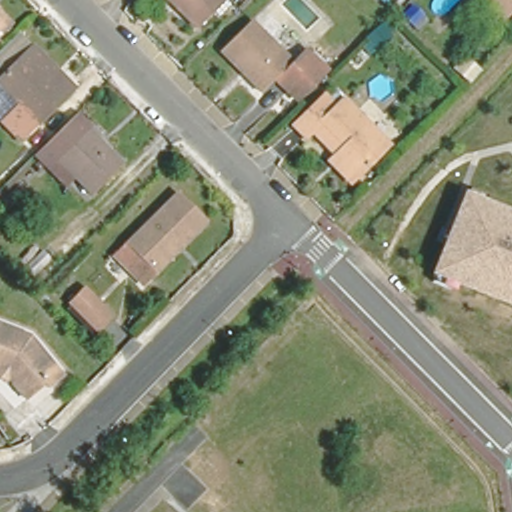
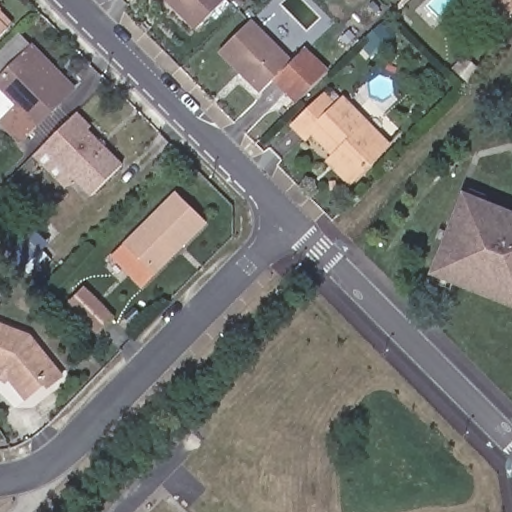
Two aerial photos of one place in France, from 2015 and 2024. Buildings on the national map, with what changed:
unchanged [(189,21),(167,0),(210,0),(189,21)]
unchanged [(512,5),(507,0),(512,0),(512,5)]
unchanged [(12,21),(4,30),(0,35),(0,9),(12,21)]
unchanged [(324,72),(298,99),(275,75),(274,75),(257,92),(215,51),(248,20),(289,60),(302,46),(326,70),(324,72)]
unchanged [(0,128),(0,117),(16,101),(0,85),(0,75),(30,45),(52,66),(62,76),(74,87),(39,124),(18,145),(0,128)]
unchanged [(327,166),(334,159),(311,136),(304,144),(290,130),(321,99),(334,112),(342,105),(385,147),(354,179),(347,186),(327,166)]
unchanged [(83,197),(48,164),(34,150),(44,140),(66,118),(80,132),(115,166),(83,197)]
unchanged [(512,308),(429,276),(462,192),(512,212),(512,308)]
unchanged [(140,286),(111,258),(121,248),(174,194),(203,221),(178,247),(151,276),(140,286)]
unchanged [(37,273),(27,264),(47,244),(56,253),(37,273)]
unchanged [(98,333),(68,303),(83,288),(114,318),(98,333)]
unchanged [(0,379),(0,319),(30,335),(60,377),(45,388),(42,384),(22,398),(6,375),(2,380),(0,379)]

